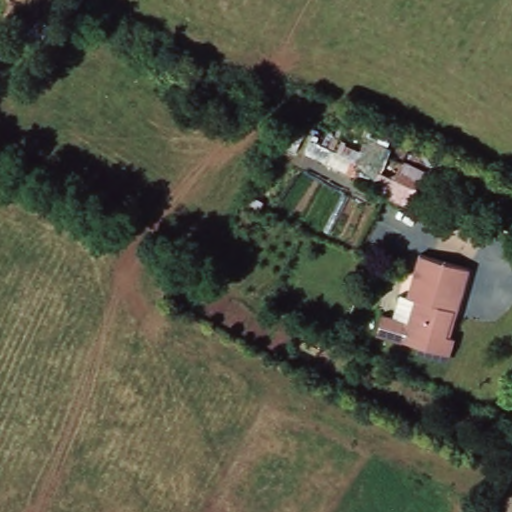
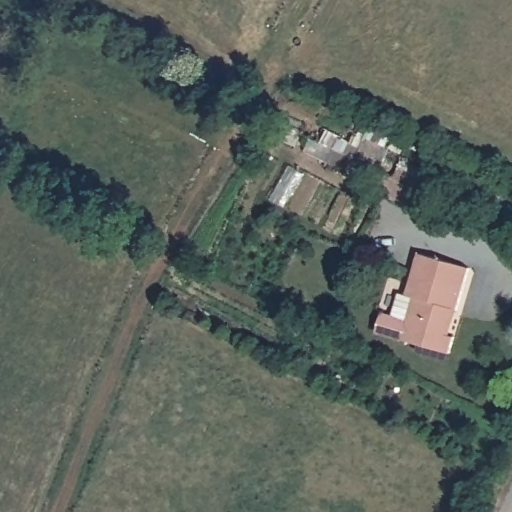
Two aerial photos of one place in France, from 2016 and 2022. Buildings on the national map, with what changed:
unchanged [(391,172),(397,157),(430,171),(416,207),(366,189),(372,167),(391,172)]
unchanged [(452,333),(456,334),(453,351),(378,334),(384,313),(394,314),(400,292),(411,292),(419,253),(468,269),(452,333)]

